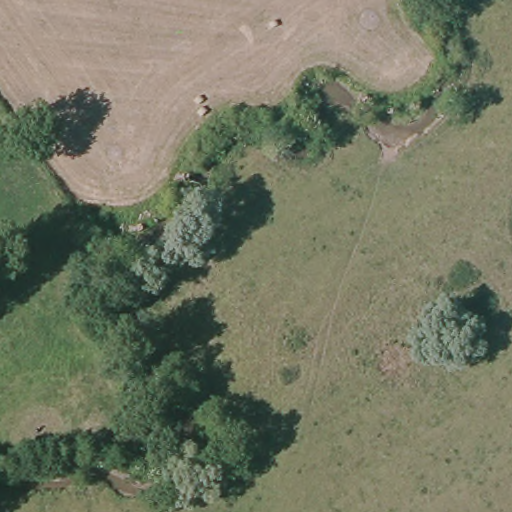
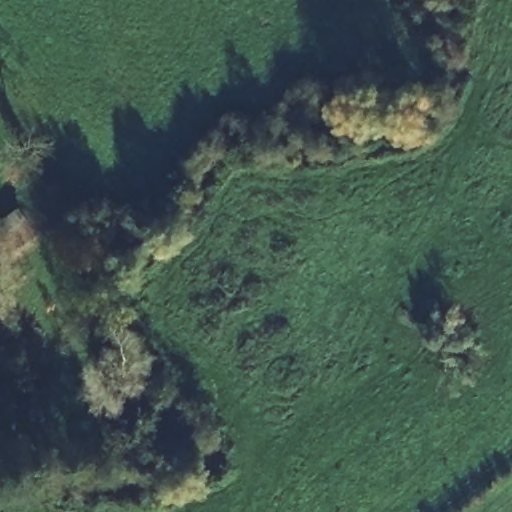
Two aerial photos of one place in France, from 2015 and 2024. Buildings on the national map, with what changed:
[]

